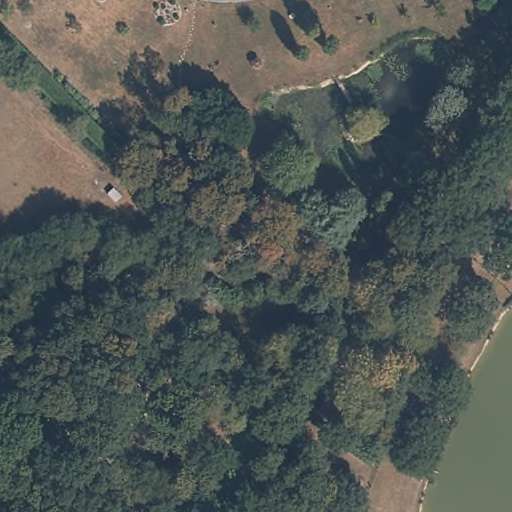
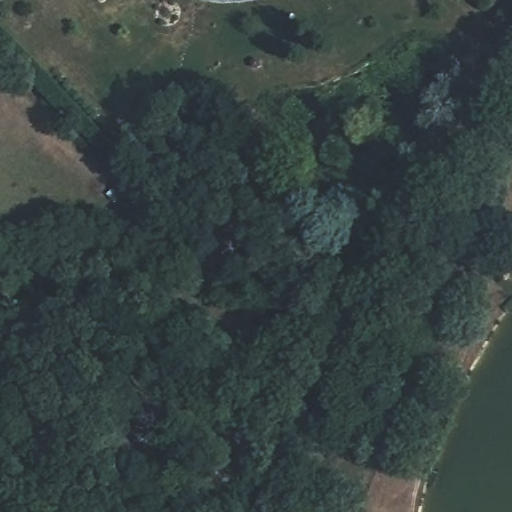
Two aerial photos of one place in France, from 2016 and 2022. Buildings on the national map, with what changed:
unchanged [(403,237),(389,228),(397,206),(413,216),(403,237)]

